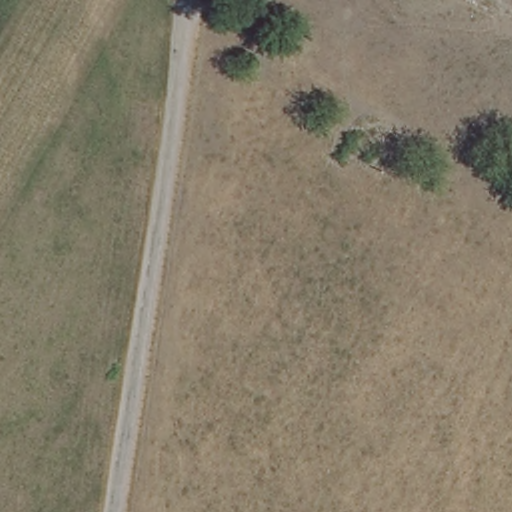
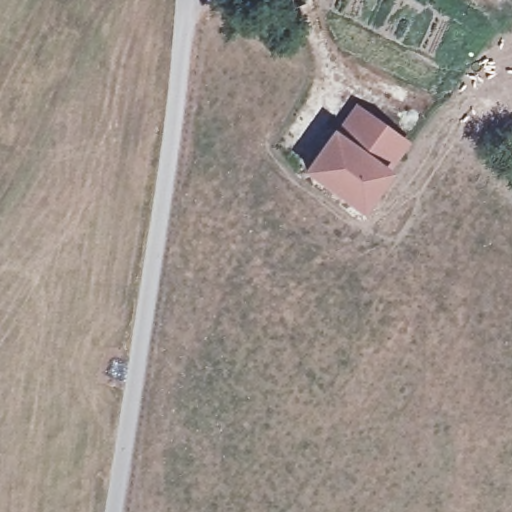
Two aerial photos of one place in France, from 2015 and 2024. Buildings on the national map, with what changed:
new [(331,134),(333,135),(355,107),(405,143),(384,172),(360,206),(307,170),(331,134)]

